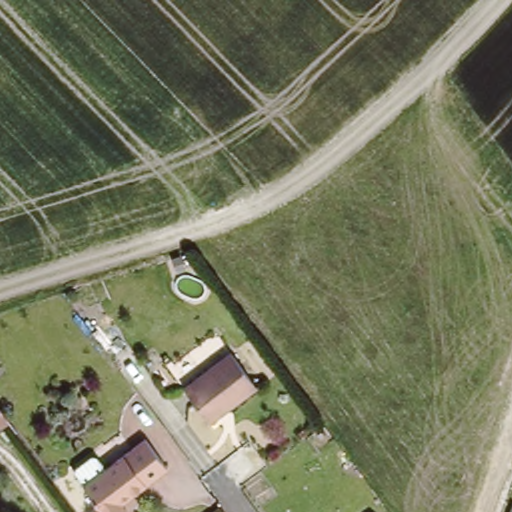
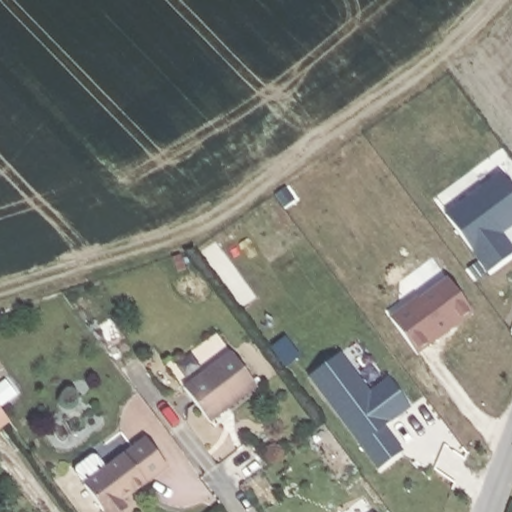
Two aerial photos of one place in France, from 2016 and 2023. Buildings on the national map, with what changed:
new [(512,190),(512,227),(501,235),(512,249),(512,255),(487,272),(443,214),(500,174),(512,190)]
new [(414,296),(419,297),(447,277),(474,313),(417,356),(389,317),(414,296)]
unchanged [(236,348),(263,385),(214,420),(188,383),(236,348)]
new [(340,352),(369,390),(388,377),(411,407),(384,426),(403,451),(378,471),(308,377),(340,352)]
unchanged [(0,428),(0,411),(8,422),(0,428)]
unchanged [(84,483),(75,471),(75,466),(91,454),(96,455),(105,466),(146,436),(168,466),(123,500),(125,502),(113,512),(105,512),(83,483),(84,483)]
unchanged [(376,510),(378,512),(374,512),(376,510)]

